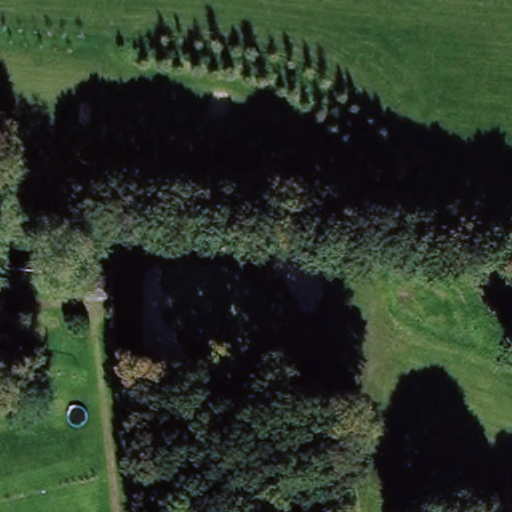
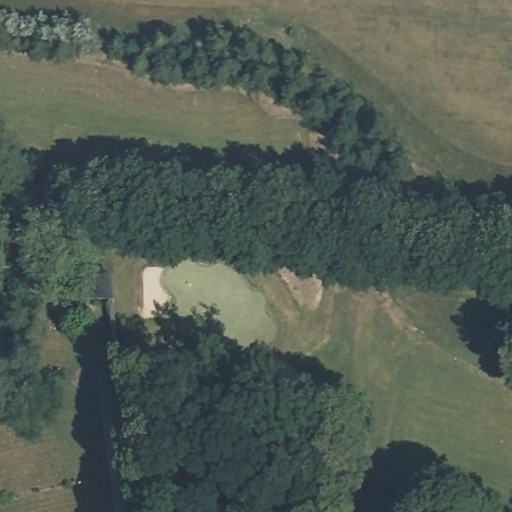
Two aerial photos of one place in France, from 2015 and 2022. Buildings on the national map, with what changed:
[]

